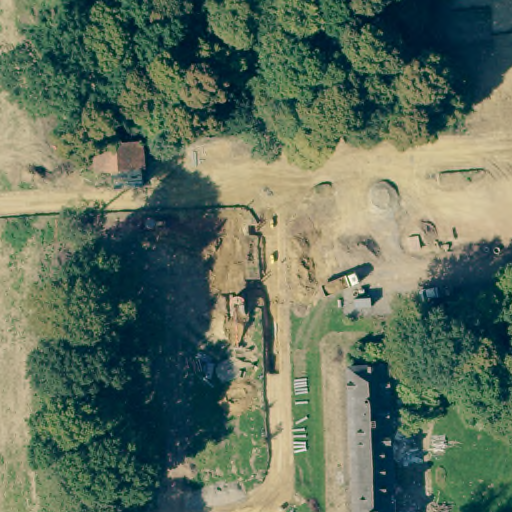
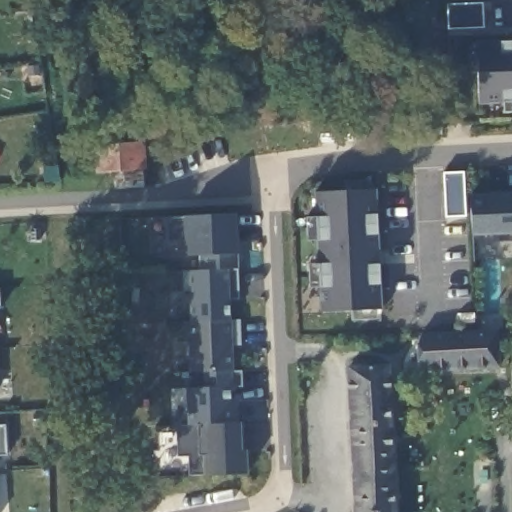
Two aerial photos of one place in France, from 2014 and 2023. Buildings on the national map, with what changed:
new [(501,104),(476,104),(475,43),(512,42),(512,113),(501,113),(501,104)]
unchanged [(132,167),(127,169),(102,172),(69,172),(66,146),(129,142),(132,167)]
new [(463,171),(465,215),(445,216),(443,171),(463,171)]
new [(345,190),(343,181),(370,180),(370,190),(377,190),(377,214),(381,286),(382,310),(377,310),(378,320),(353,321),(351,311),(320,312),(320,288),(311,288),(310,265),(320,265),(318,241),(308,241),(308,218),(318,217),(315,194),(345,190)]
new [(512,192),(512,234),(472,236),(471,195),(512,192)]
new [(189,456),(177,457),(176,425),(189,425),(188,388),(204,387),(204,371),(190,372),(189,341),(185,341),(185,322),(191,322),(187,270),(199,270),(199,255),(184,256),(185,241),(165,242),(165,217),(184,216),(235,215),(236,255),(236,269),(239,300),(230,301),(231,320),(240,320),(241,346),(232,346),(233,372),(242,372),(242,388),(231,389),(232,401),(236,400),(236,423),(241,423),(242,451),(247,451),(247,473),(203,476),(189,475),(189,456)]
new [(502,370),(426,372),(416,360),(416,345),(420,333),(499,331),(502,370)]
unchanged [(397,512),(357,512),(351,368),(389,368),(397,512)]
new [(4,427),(5,455),(0,455),(0,427),(4,427)]

